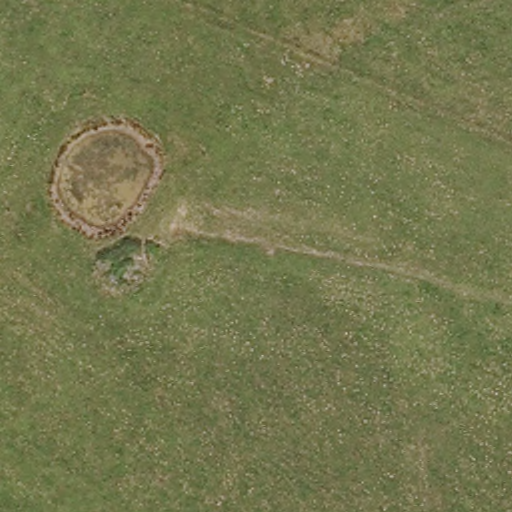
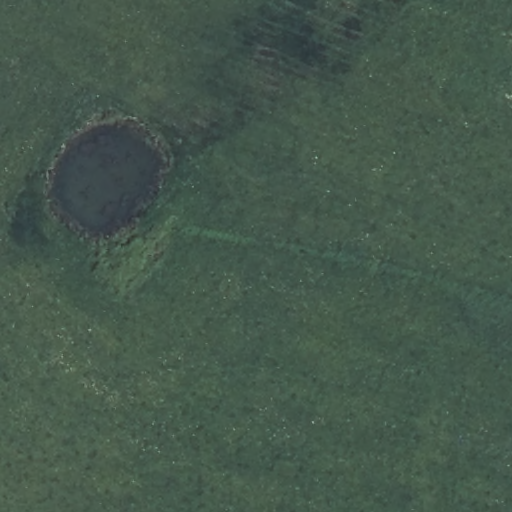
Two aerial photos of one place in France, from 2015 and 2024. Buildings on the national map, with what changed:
[]

